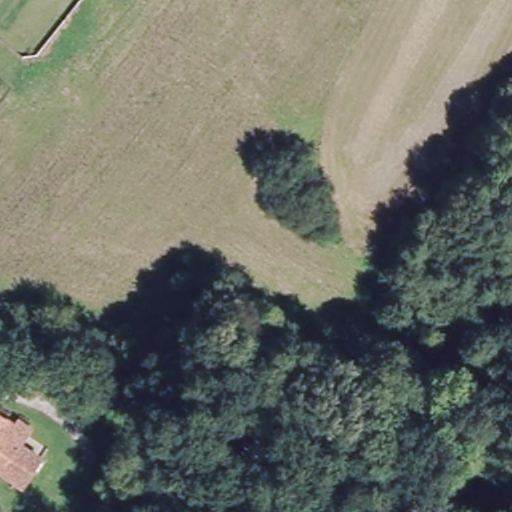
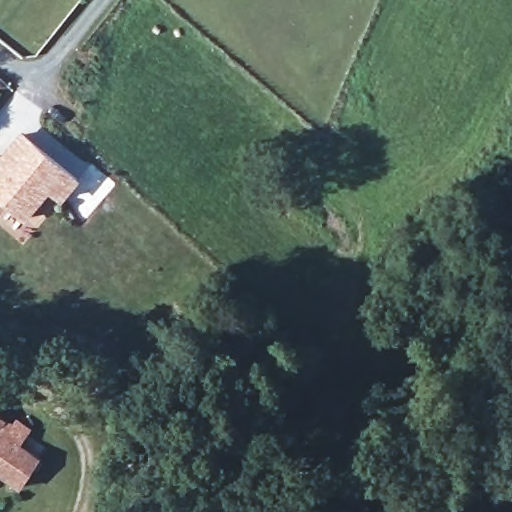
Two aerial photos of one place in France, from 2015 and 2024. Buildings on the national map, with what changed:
new [(81,178),(64,202),(50,190),(27,220),(0,199),(0,155),(1,155),(22,130),(81,178)]
unchanged [(18,414),(33,423),(23,439),(41,451),(24,479),(0,464),(0,408),(15,418),(18,414)]

